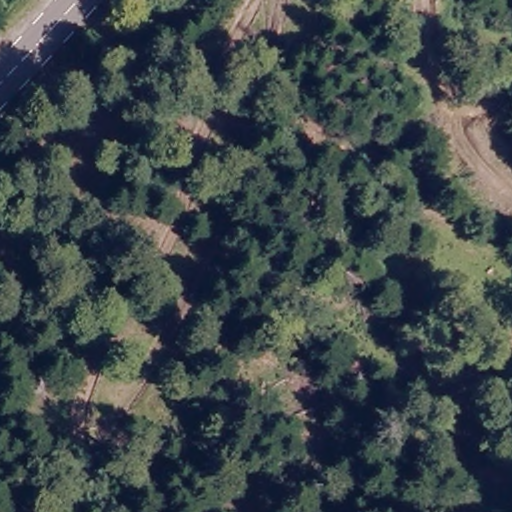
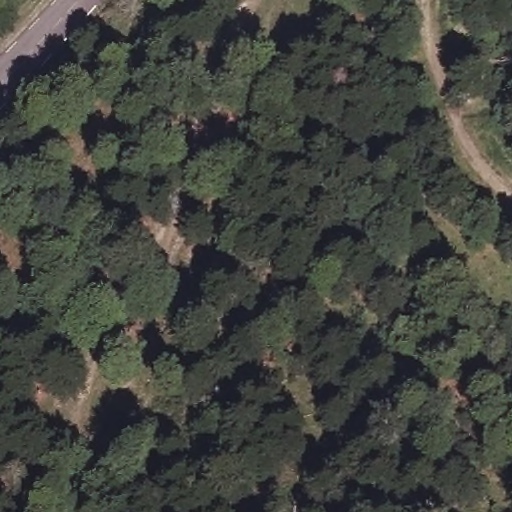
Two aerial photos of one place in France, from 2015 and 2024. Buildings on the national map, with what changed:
[]

